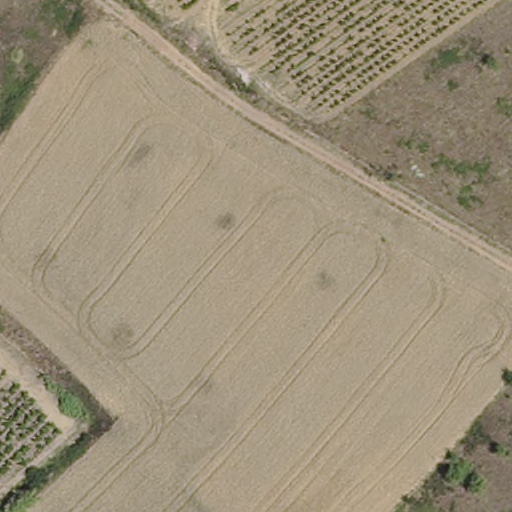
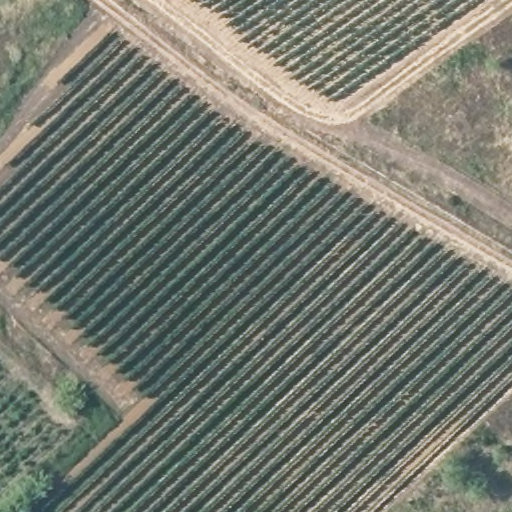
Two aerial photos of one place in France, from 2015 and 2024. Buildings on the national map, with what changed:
[]

